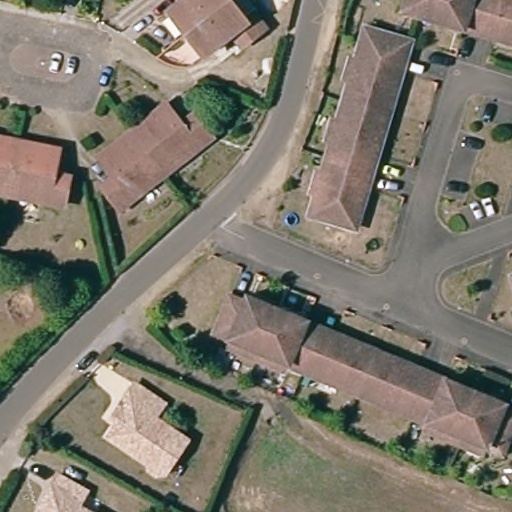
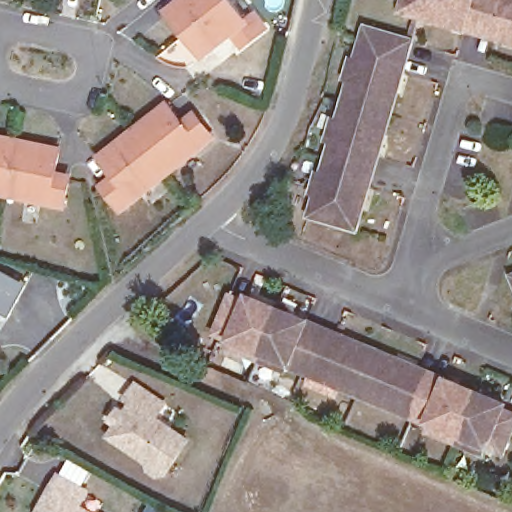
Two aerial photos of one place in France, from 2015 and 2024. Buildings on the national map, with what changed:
unchanged [(177,7),(186,0),(230,0),(193,27),(177,7)]
unchanged [(258,12),(268,25),(244,42),(235,31),(212,50),(193,27),(230,0),(233,0),(248,19),(258,12)]
unchanged [(486,38),(406,15),(411,0),(512,0),(512,46),(486,38)]
unchanged [(362,234),(318,221),(324,201),(329,203),(351,127),(343,125),(360,69),(361,66),(371,33),(377,35),(414,47),(362,234)]
unchanged [(316,199),(354,67),(360,69),(343,125),(351,127),(329,203),(324,201),(316,199)]
unchanged [(140,128),(175,102),(188,117),(204,104),(222,128),(173,167),(140,128)]
unchanged [(123,208),(101,185),(115,174),(103,157),(140,128),(173,167),(123,208)]
unchanged [(0,130),(28,136),(15,189),(0,186),(0,130)]
unchanged [(70,146),(65,169),(80,173),(73,202),(15,189),(28,136),(70,146)]
new [(18,297),(9,315),(0,310),(0,270),(25,283),(18,297)]
unchanged [(278,306),(381,348),(483,390),(512,402),(512,435),(506,450),(464,433),(417,415),(362,392),(260,351),(217,334),(235,289),(278,306)]
unchanged [(160,408),(150,423),(184,446),(164,476),(153,477),(148,469),(106,441),(127,407),(122,404),(132,389),(160,408)]
unchanged [(89,490),(80,503),(94,512),(45,512),(56,494),(50,490),(59,472),(89,490)]

